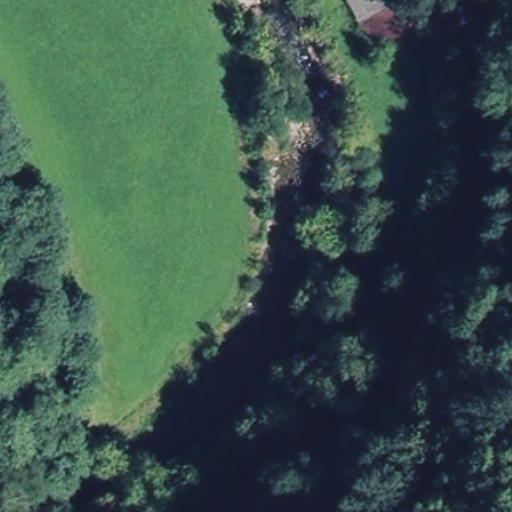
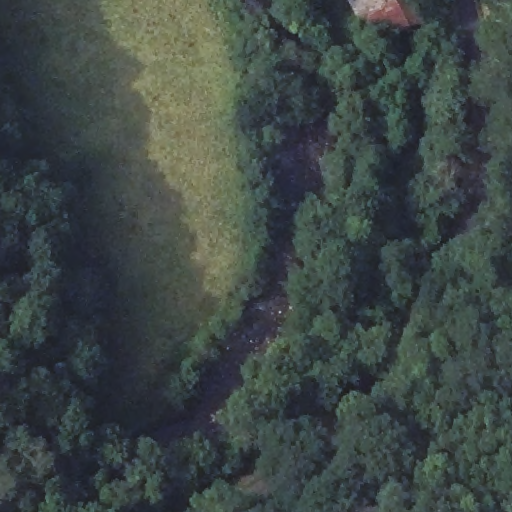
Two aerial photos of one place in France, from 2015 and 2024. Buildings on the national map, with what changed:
unchanged [(374,46),(351,0),(423,0),(430,15),(374,46)]

